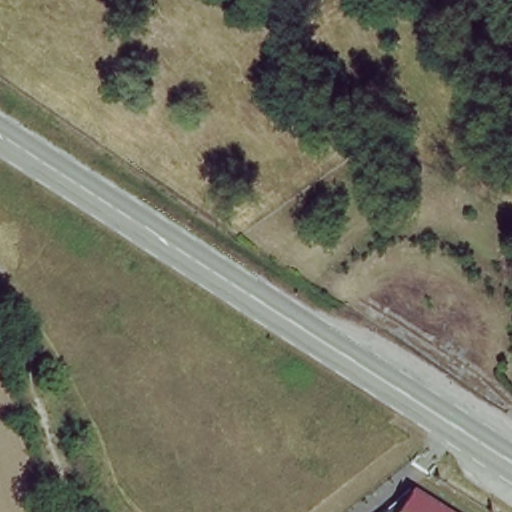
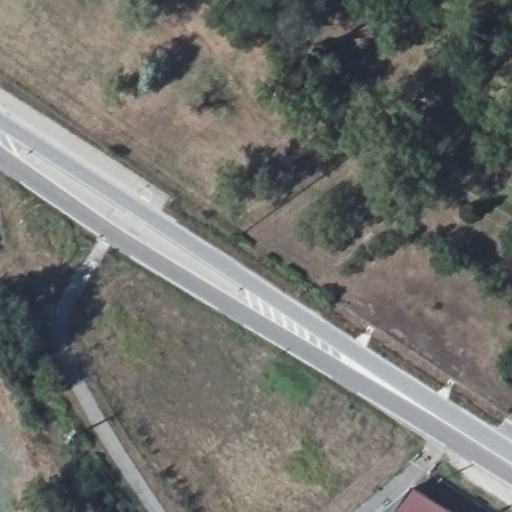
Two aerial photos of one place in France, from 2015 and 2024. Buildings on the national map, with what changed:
unchanged [(447,512),(394,512),(410,488),(447,512)]

